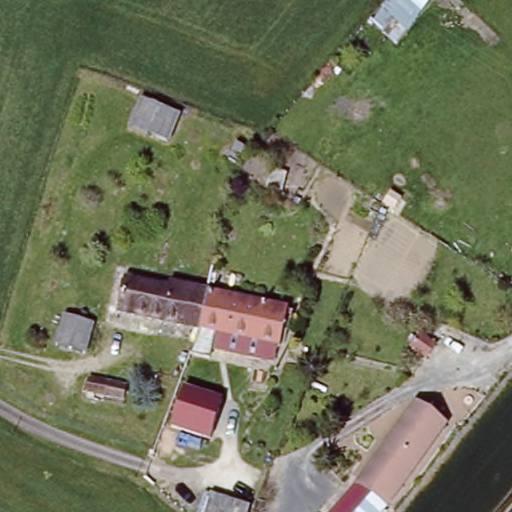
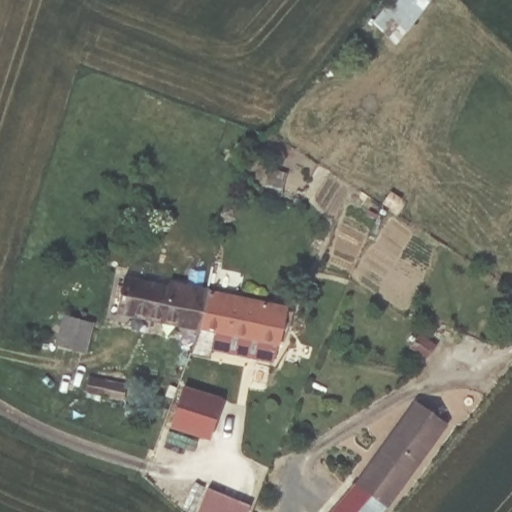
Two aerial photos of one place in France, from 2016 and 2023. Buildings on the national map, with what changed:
unchanged [(428,0),(396,39),(370,19),(386,0),(428,0)]
unchanged [(141,93),(182,113),(170,143),(127,124),(141,93)]
unchanged [(165,288),(167,280),(210,289),(202,329),(117,313),(124,280),(165,288)]
unchanged [(289,304),(281,344),(217,331),(209,354),(195,352),(202,329),(210,289),(289,304)]
unchanged [(92,326),(87,341),(68,334),(74,319),(92,326)]
unchanged [(109,382),(106,397),(85,393),(87,378),(109,382)]
unchanged [(218,399),(205,435),(172,424),(185,387),(218,399)]
unchanged [(357,480),(415,403),(447,423),(386,509),(384,512),(329,512),(357,480)]
unchanged [(252,503),(249,512),(204,512),(212,493),(252,503)]

